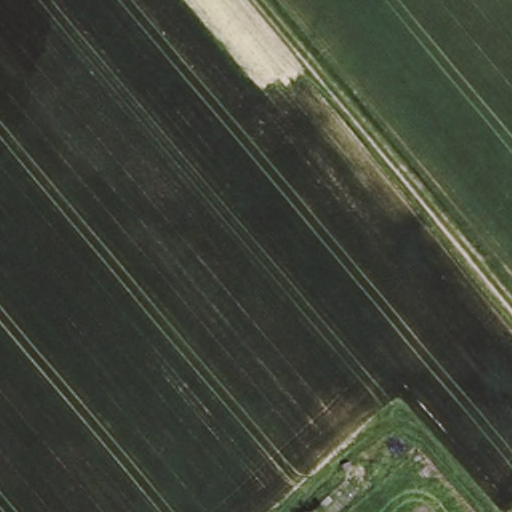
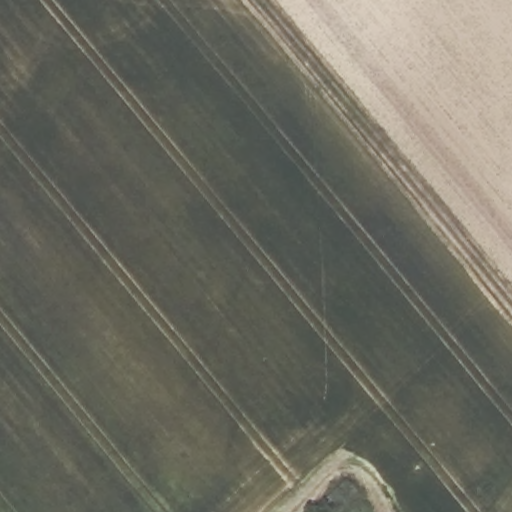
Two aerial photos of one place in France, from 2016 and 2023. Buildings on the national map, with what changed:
[]

